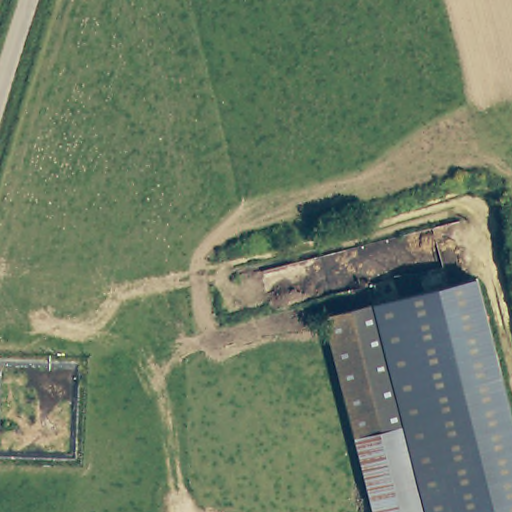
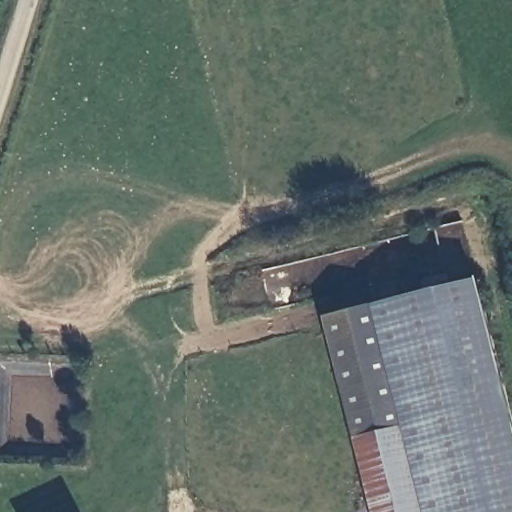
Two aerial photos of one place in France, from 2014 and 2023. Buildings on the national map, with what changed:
unchanged [(479,278),(512,410),(512,512),(376,512),(329,314),(479,278)]

